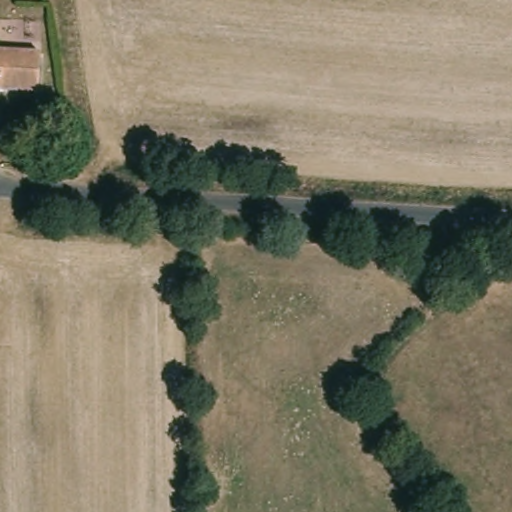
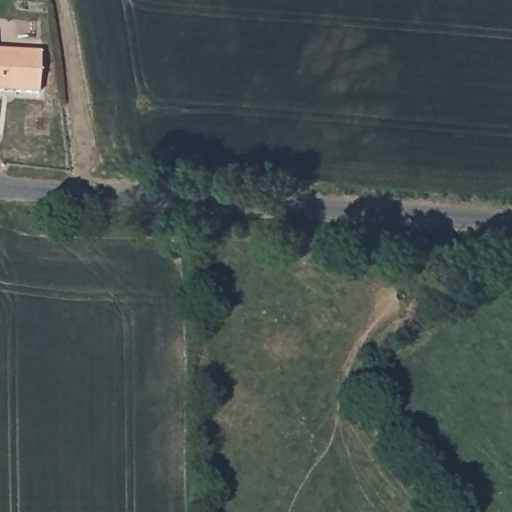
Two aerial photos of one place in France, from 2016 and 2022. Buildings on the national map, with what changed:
unchanged [(0,79),(0,37),(41,39),(39,81),(0,79)]

